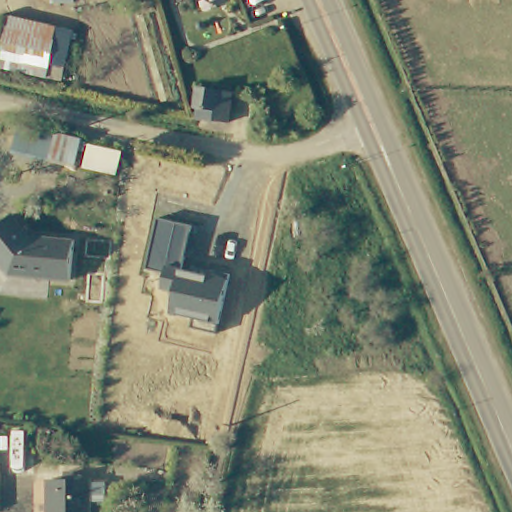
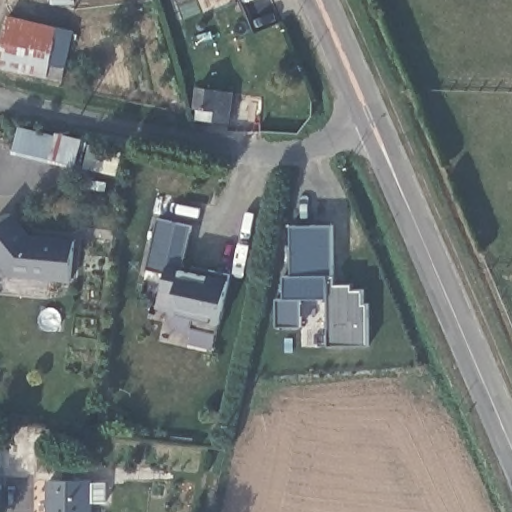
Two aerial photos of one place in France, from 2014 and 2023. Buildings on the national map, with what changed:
new [(76,3),(52,3),(52,0),(76,0),(76,3)]
unchanged [(184,0),(196,0),(186,4),(184,0)]
unchanged [(50,64),(66,68),(62,87),(0,74),(0,41),(6,14),(56,27),(50,64)]
unchanged [(227,119),(192,120),(192,109),(187,109),(186,89),(227,88),(227,119)]
new [(20,126),(83,139),(77,166),(12,154),(20,126)]
unchanged [(10,278),(0,265),(0,226),(15,215),(30,236),(76,241),(74,283),(10,278)]
unchanged [(217,335),(195,330),(196,320),(170,315),(173,293),(161,291),(164,273),(148,270),(160,220),(193,227),(185,267),(233,277),(217,335)]
new [(276,299),(284,299),(283,276),(292,276),(291,226),(332,226),(333,285),(351,285),(351,291),(361,291),(361,305),(367,305),(367,345),(329,346),(328,299),(301,299),(301,327),(277,327),(276,299)]
unchanged [(0,512),(0,464),(3,511),(0,512)]
unchanged [(91,484),(89,512),(48,512),(49,481),(91,484)]

